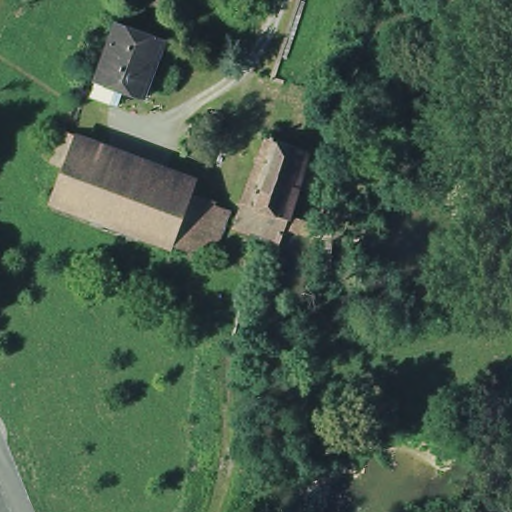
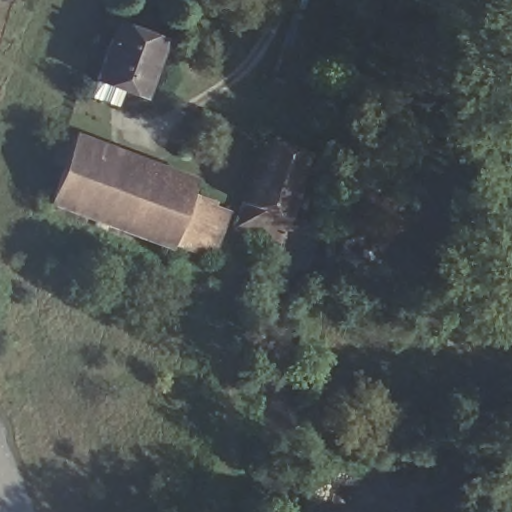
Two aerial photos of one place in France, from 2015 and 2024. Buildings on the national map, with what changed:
unchanged [(94,95),(100,77),(121,21),(170,39),(148,96),(122,86),(116,103),(94,95)]
unchanged [(298,194),(254,177),(278,111),(319,125),(298,194)]
unchanged [(213,262),(194,255),(53,203),(63,170),(52,165),(63,134),(74,138),(70,153),(212,205),(211,210),(229,216),(213,262)]
unchanged [(294,205),(291,218),(246,201),(254,177),(298,194),(294,205)]

